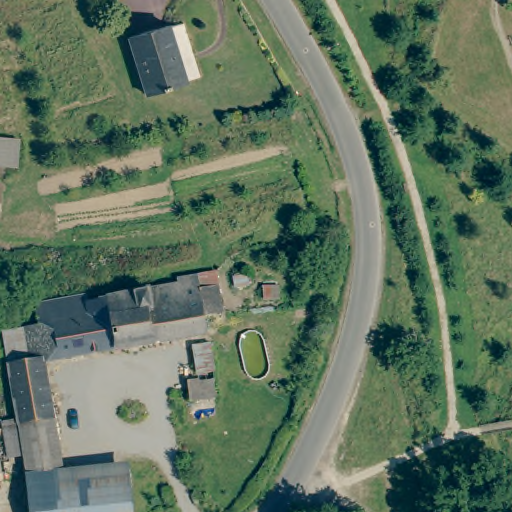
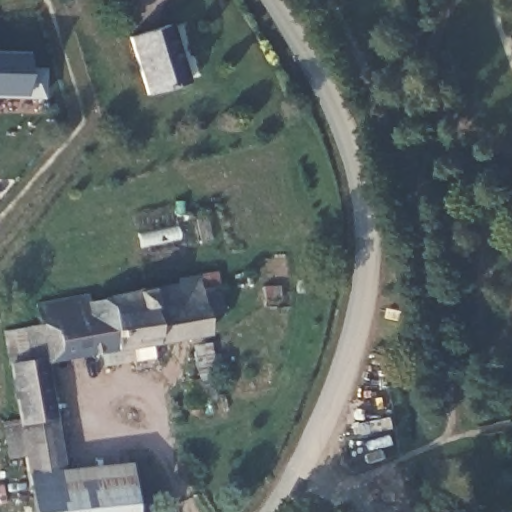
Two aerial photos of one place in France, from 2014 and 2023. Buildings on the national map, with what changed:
unchanged [(192,78),(152,90),(134,33),(174,20),(192,78)]
new [(25,71),(42,72),(41,96),(22,96),(0,96),(0,52),(25,54),(25,71)]
unchanged [(204,316),(207,334),(132,347),(44,362),(54,418),(65,485),(29,489),(24,456),(9,458),(2,424),(19,421),(13,391),(9,366),(4,333),(26,329),(39,325),(36,305),(87,296),(88,303),(106,299),(132,295),(132,293),(149,289),(149,290),(180,285),(179,279),(196,277),(216,273),(218,287),(222,313),(204,316)]
unchanged [(280,300),(266,304),(262,288),(276,284),(280,300)]
unchanged [(214,372),(197,374),(194,352),(199,351),(199,346),(209,343),(214,372)]
unchanged [(215,398),(190,401),(187,383),(213,381),(215,398)]
unchanged [(132,512),(31,512),(29,489),(65,485),(129,478),(132,512)]

